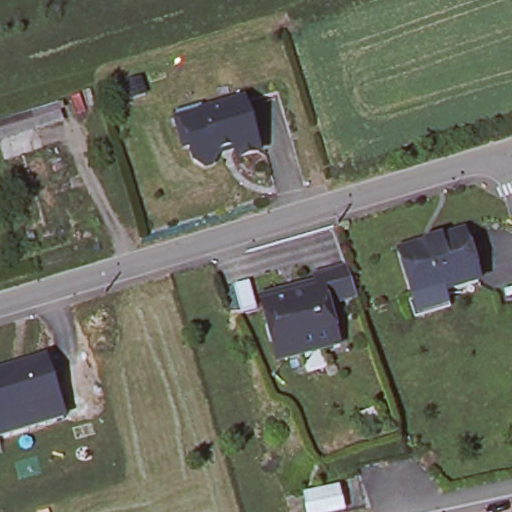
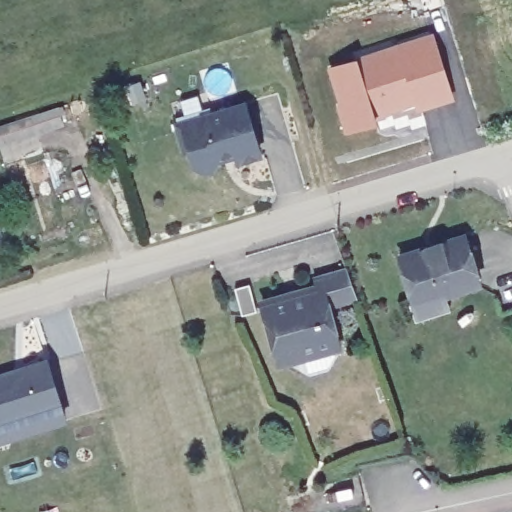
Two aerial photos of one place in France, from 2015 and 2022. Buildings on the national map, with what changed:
new [(436,34),(457,104),(417,115),(416,110),(374,124),(376,127),(346,134),(328,70),(436,34)]
unchanged [(211,162),(207,166),(199,167),(195,165),(191,162),(186,147),(181,149),(175,129),(173,122),(198,115),(240,102),(254,151),(233,157),(232,152),(213,157),(211,162)]
unchanged [(38,133),(0,146),(0,128),(3,127),(33,117),(38,133)]
unchanged [(458,241),(474,289),(410,308),(395,261),(458,241)]
unchanged [(272,347),(268,348),(264,332),(267,331),(261,305),(311,292),(308,279),(326,274),(331,272),(339,303),(336,304),(321,308),(331,347),(299,355),(276,361),(272,347)]
unchanged [(65,422),(0,443),(0,372),(46,357),(65,422)]

